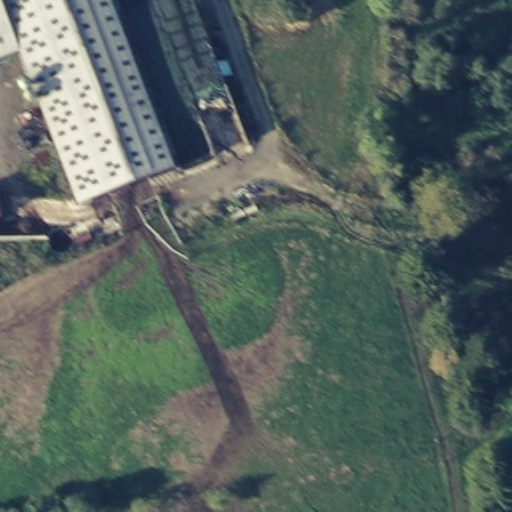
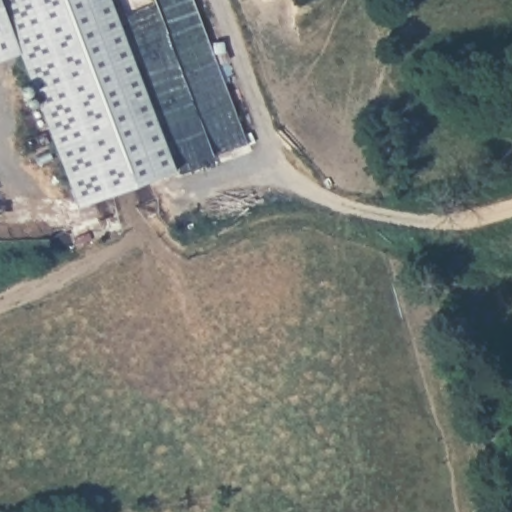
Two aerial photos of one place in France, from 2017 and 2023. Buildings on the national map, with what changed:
unchanged [(176,169),(80,206),(20,54),(0,61),(0,0),(119,0),(183,166),(176,169)]

